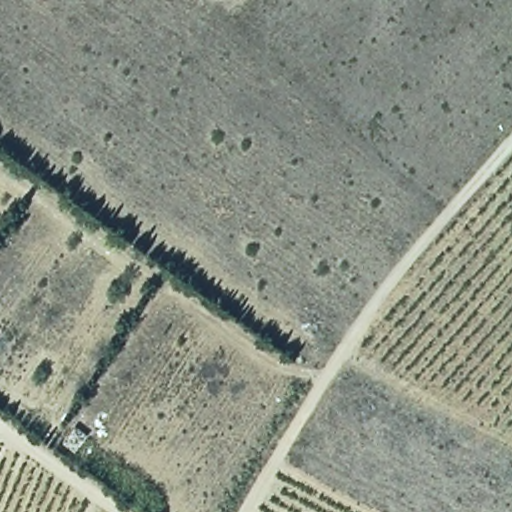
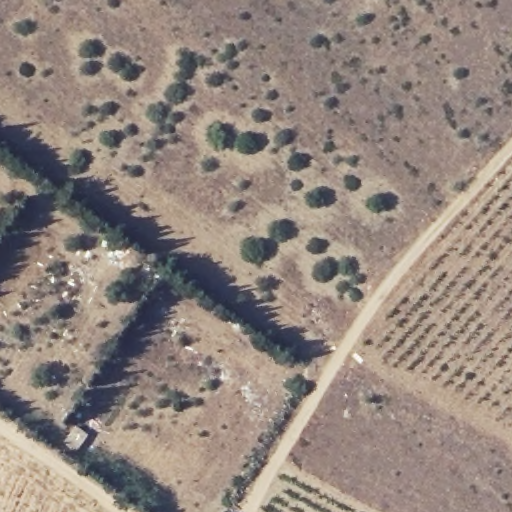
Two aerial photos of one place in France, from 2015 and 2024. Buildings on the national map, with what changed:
unchanged [(72,423),(87,431),(78,449),(64,441),(72,423)]

